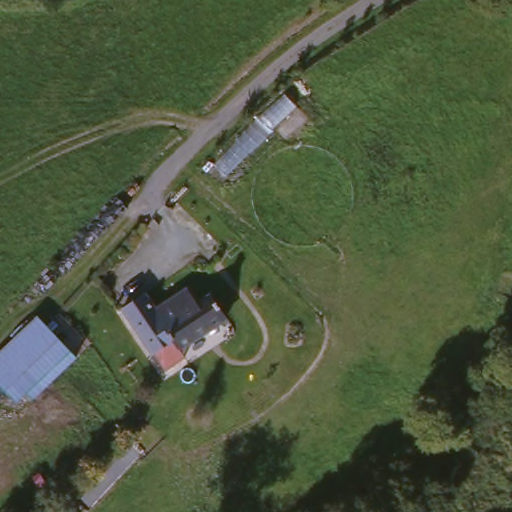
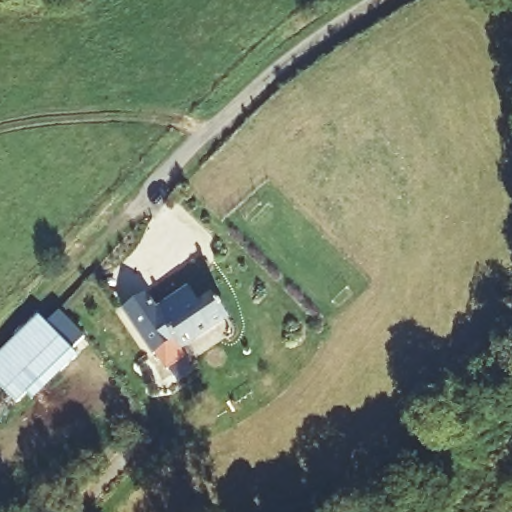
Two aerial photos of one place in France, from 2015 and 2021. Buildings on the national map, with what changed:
unchanged [(126,309),(141,299),(152,316),(185,295),(194,310),(205,302),(206,302),(209,307),(224,330),(220,332),(216,335),(187,353),(177,360),(179,364),(170,369),(160,376),(149,359),(147,360),(118,314),(126,309)]
unchanged [(86,366),(26,413),(0,379),(0,365),(53,323),(86,366)]

